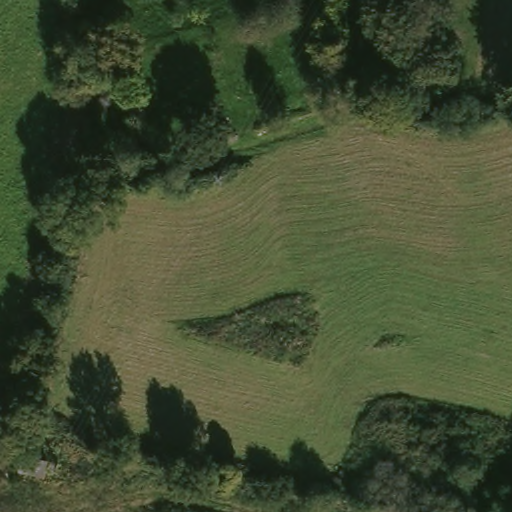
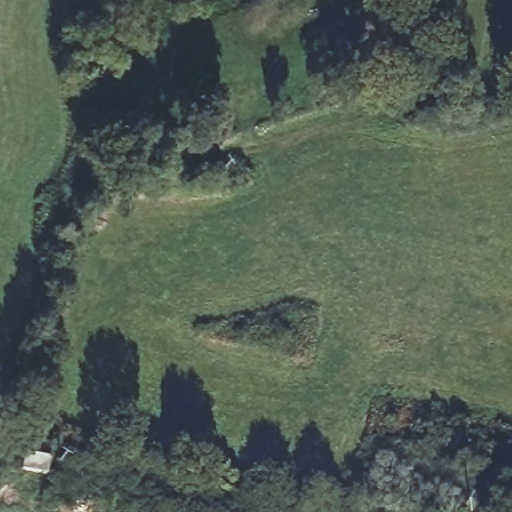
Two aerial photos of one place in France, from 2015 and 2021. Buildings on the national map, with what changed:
unchanged [(55,463),(52,479),(25,474),(28,459),(55,463)]

